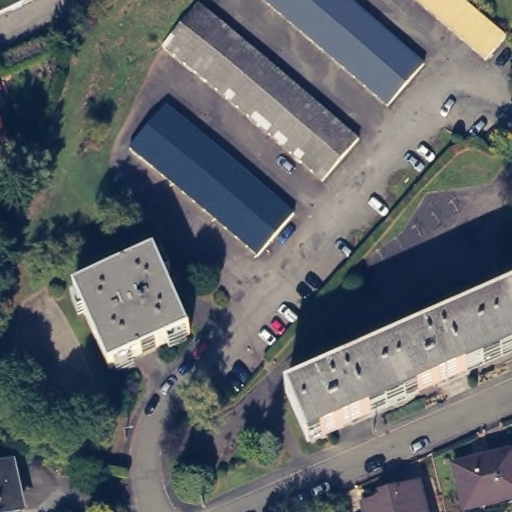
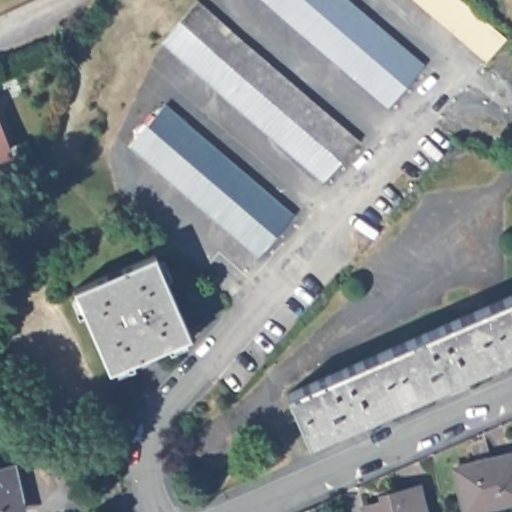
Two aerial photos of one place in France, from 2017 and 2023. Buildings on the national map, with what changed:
unchanged [(0,0),(31,0),(0,14),(0,0)]
unchanged [(162,39),(194,0),(203,0),(359,135),(322,177),(162,39)]
unchanged [(387,102),(268,0),(353,0),(424,60),(387,102)]
unchanged [(466,0),(506,33),(486,56),(421,0),(466,0)]
unchanged [(509,80),(512,76),(512,84),(509,80)]
unchanged [(161,95),(289,205),(252,247),(124,137),(161,95)]
unchanged [(0,148),(0,145),(1,147),(0,148)]
unchanged [(109,366),(74,285),(155,249),(190,330),(109,366)]
unchanged [(307,443),(286,394),(512,295),(512,353),(307,443)]
unchanged [(483,502),(482,496),(463,500),(455,463),(477,458),(478,462),(512,453),(512,495),(483,502)]
unchanged [(20,508),(1,512),(0,512),(0,466),(11,464),(20,508)]
unchanged [(364,508),(382,503),(381,497),(419,487),(424,512),(365,512),(364,508)]

